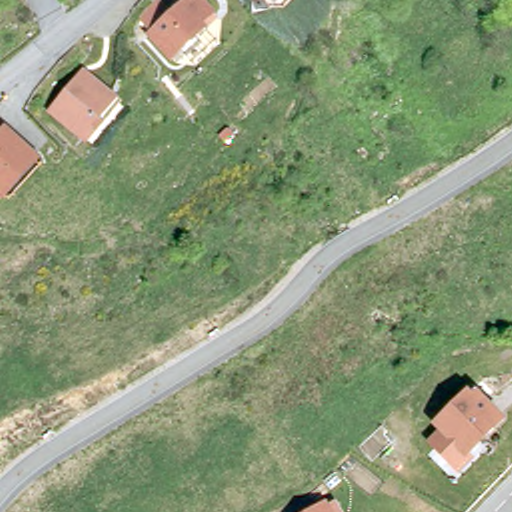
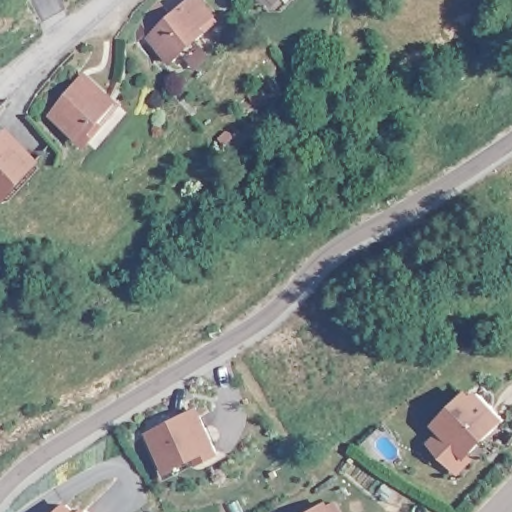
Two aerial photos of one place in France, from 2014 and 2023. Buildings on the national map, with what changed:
unchanged [(270,0),(284,0),(277,6),(270,0)]
unchanged [(186,64),(182,60),(172,68),(150,43),(195,1),(215,21),(202,33),(206,38),(197,46),(201,51),(186,64)]
unchanged [(100,131),(87,146),(55,120),(85,84),(113,108),(117,111),(100,131)]
unchanged [(0,191),(0,149),(7,142),(33,166),(18,183),(5,198),(0,193),(0,191)]
unchanged [(506,421),(472,455),(476,461),(460,475),(428,443),(440,432),(432,425),(469,388),(473,392),(477,389),(506,421)]
new [(196,459),(165,474),(146,433),(199,406),(223,453),(199,465),(196,459)]
unchanged [(343,512),(306,512),(326,500),(329,504),(337,501),(343,512)]
new [(67,502),(78,512),(57,512),(67,502)]
new [(89,512),(79,512),(84,507),(89,512)]

